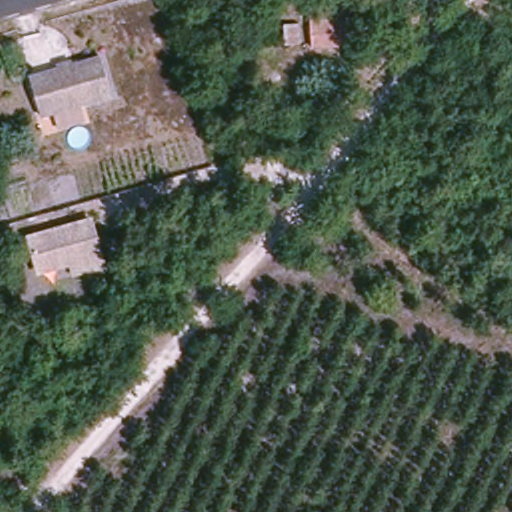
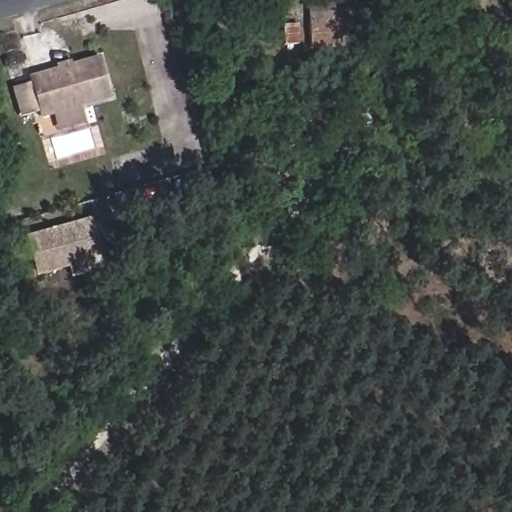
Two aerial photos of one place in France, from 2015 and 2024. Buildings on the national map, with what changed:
unchanged [(311,6),(346,4),(347,16),(347,31),(348,43),(312,46),(312,41),(311,17),(311,6)]
unchanged [(284,24),(298,22),(298,44),(285,47),(284,24)]
unchanged [(45,116),(35,78),(106,59),(116,97),(45,116)]
unchanged [(75,276),(72,265),(40,273),(30,240),(92,222),(102,256),(105,268),(75,276)]

